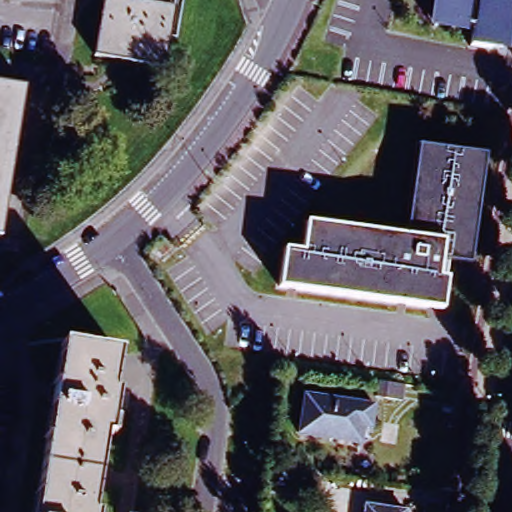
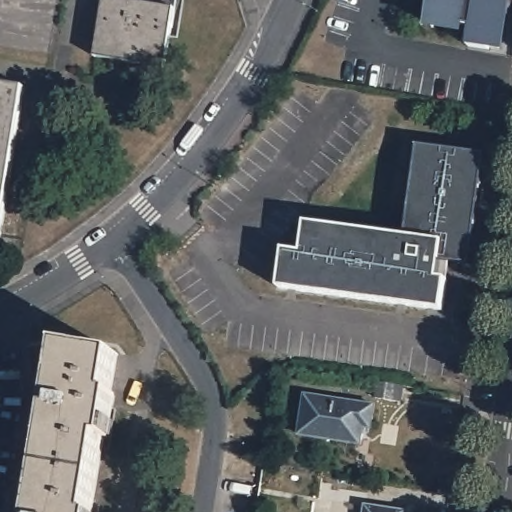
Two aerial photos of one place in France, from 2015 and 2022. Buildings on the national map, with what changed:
unchanged [(165,70),(95,58),(105,0),(123,0),(176,9),(165,70)]
unchanged [(503,52),(493,50),(493,53),(473,50),(476,30),(438,24),(442,1),(437,0),(438,0),(512,0),(512,12),(510,12),(503,52)]
unchanged [(0,238),(0,85),(25,89),(0,238)]
unchanged [(280,250),(302,252),(307,213),(407,227),(417,145),(485,153),(474,259),(451,258),(445,311),(277,287),(280,250)]
unchanged [(97,512),(34,512),(62,346),(123,356),(97,512)]
unchanged [(405,384),(401,401),(375,397),(377,380),(405,384)]
unchanged [(372,404),(368,427),(359,425),(356,443),(296,433),(303,392),(372,404)]
unchanged [(363,509),(384,512),(363,512),(363,509)]

